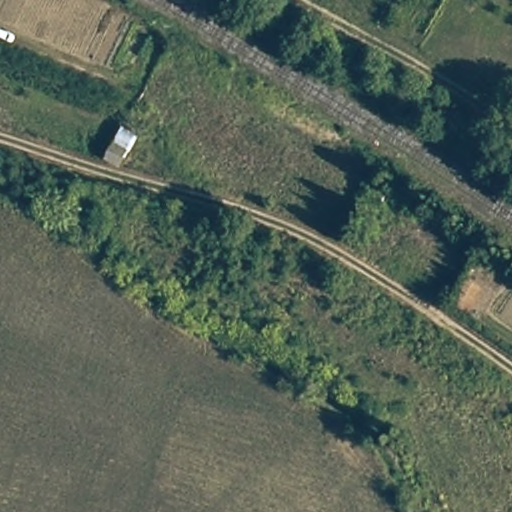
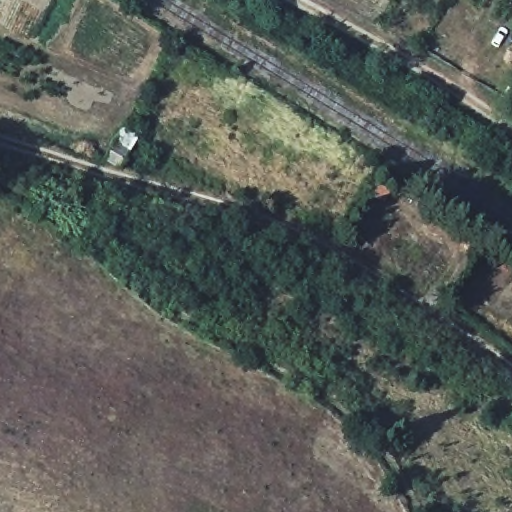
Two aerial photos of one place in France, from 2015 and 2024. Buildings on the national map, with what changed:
unchanged [(143,130),(120,165),(100,154),(120,119),(143,130)]

